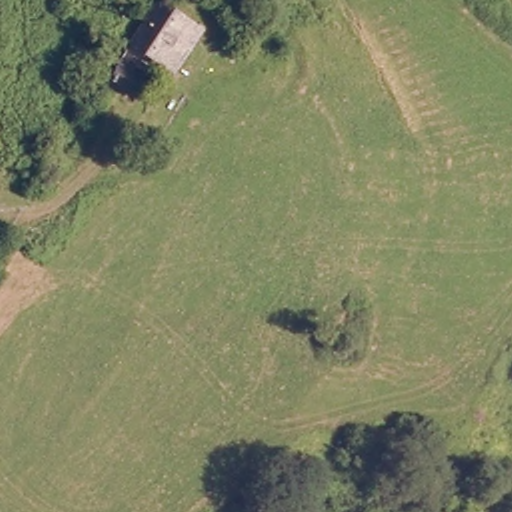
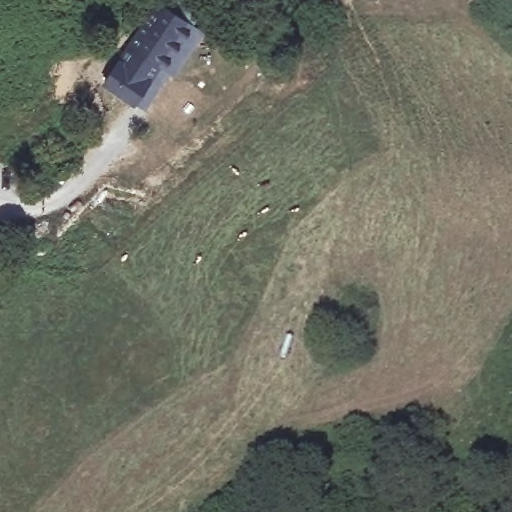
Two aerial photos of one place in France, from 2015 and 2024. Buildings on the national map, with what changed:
unchanged [(131,44),(157,1),(201,27),(175,70),(131,44)]
unchanged [(132,59),(159,73),(145,95),(120,82),(125,71),(132,59)]

